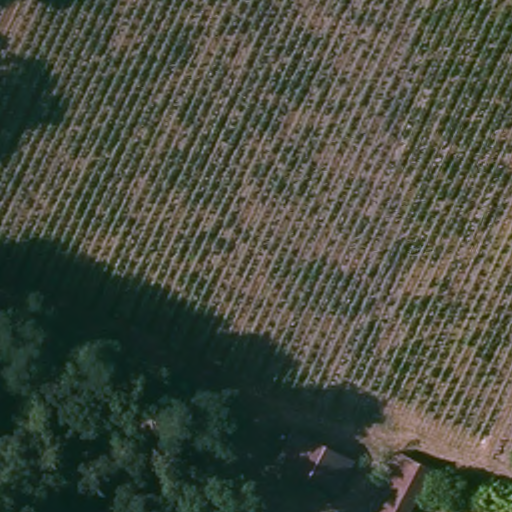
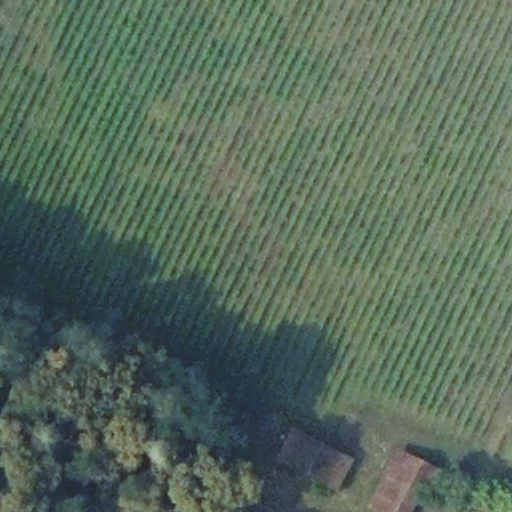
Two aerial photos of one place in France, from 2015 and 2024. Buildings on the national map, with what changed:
unchanged [(299,432),(355,460),(349,475),(343,487),(286,458),(296,438),(299,432)]
unchanged [(373,507),(400,448),(441,468),(415,512),(384,512),(373,507)]

